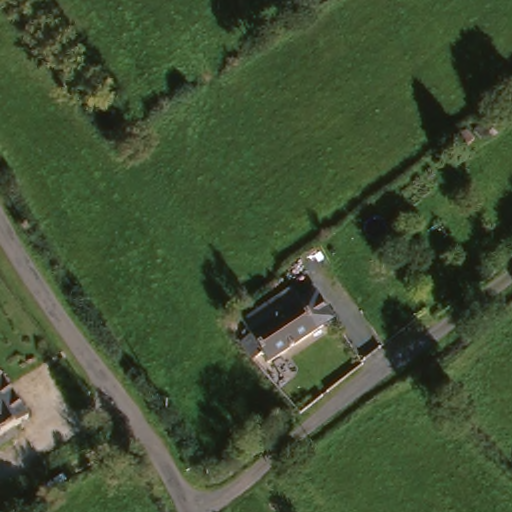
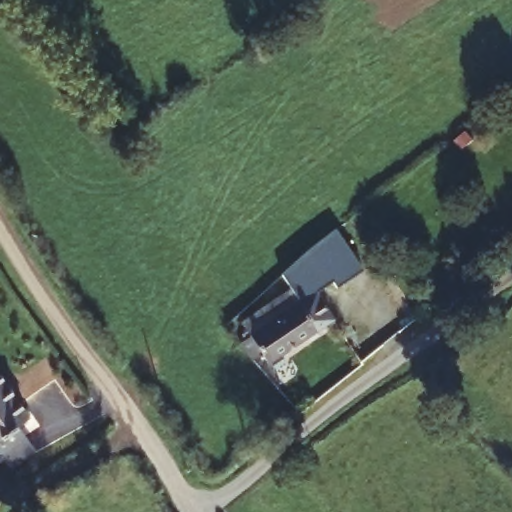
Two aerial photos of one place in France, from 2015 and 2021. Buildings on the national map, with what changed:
new [(363,271),(336,288),(333,282),(320,290),(318,286),(307,294),(299,281),(291,286),(283,274),(336,230),(363,271)]
unchanged [(334,320),(272,360),(249,331),(254,328),(246,315),(273,298),(299,281),(307,294),(318,286),(339,317),(334,320)]
unchanged [(0,388),(0,374),(6,383),(28,415),(0,434),(0,388)]

